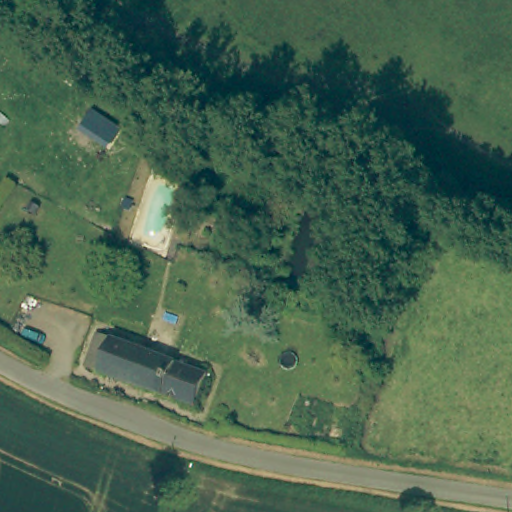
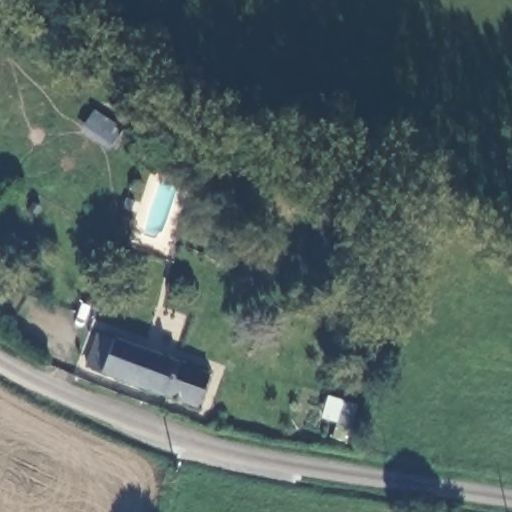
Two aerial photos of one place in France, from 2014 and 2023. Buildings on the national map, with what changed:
unchanged [(117,343),(182,364),(211,373),(199,408),(105,377),(91,372),(102,338),(117,343)]

